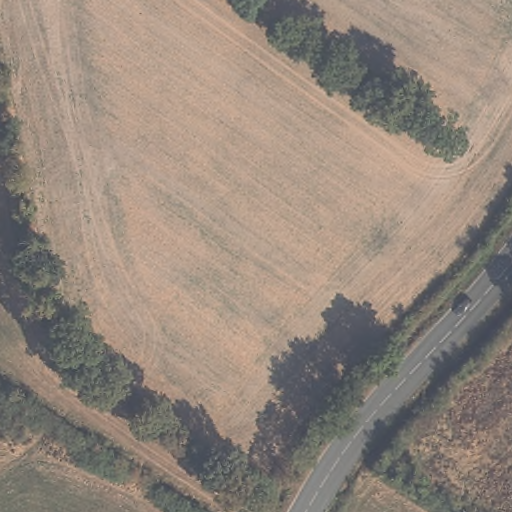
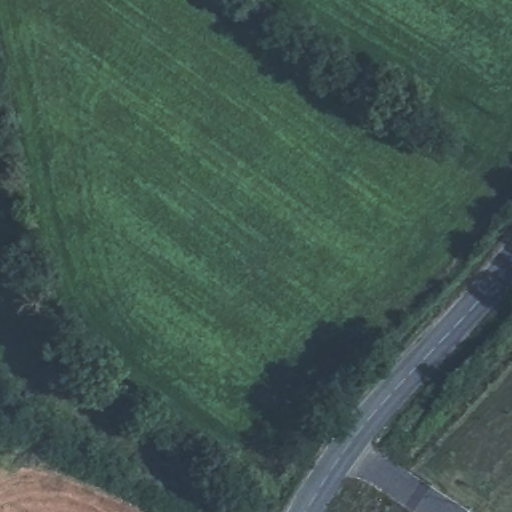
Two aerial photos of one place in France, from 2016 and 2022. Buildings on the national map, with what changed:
[]

